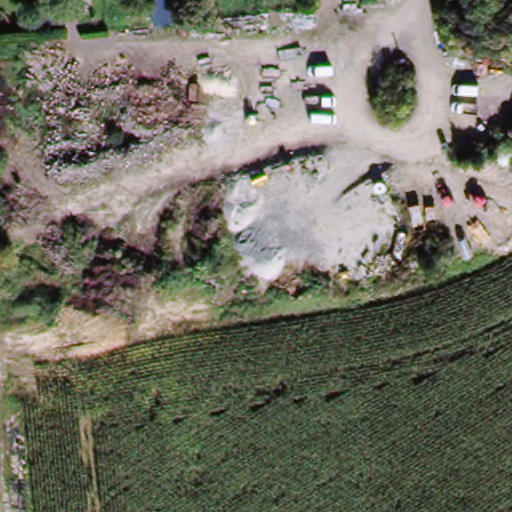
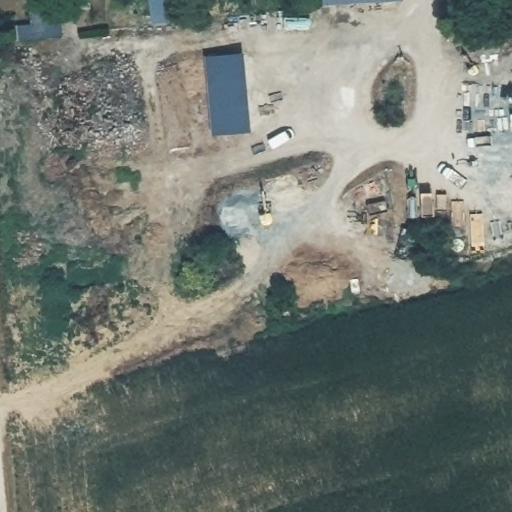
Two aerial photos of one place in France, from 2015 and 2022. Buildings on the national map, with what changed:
new [(245,54),(251,131),(212,135),(205,56),(245,54)]

